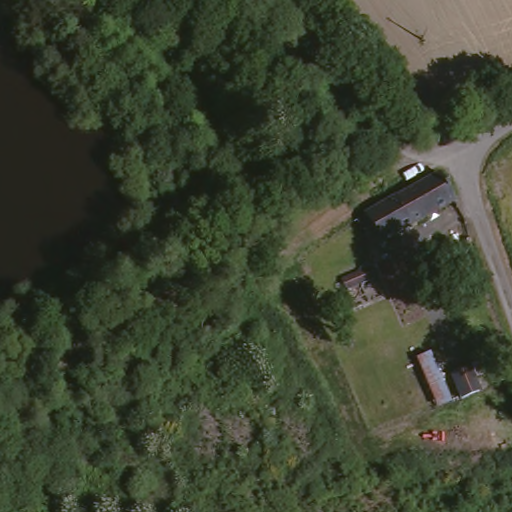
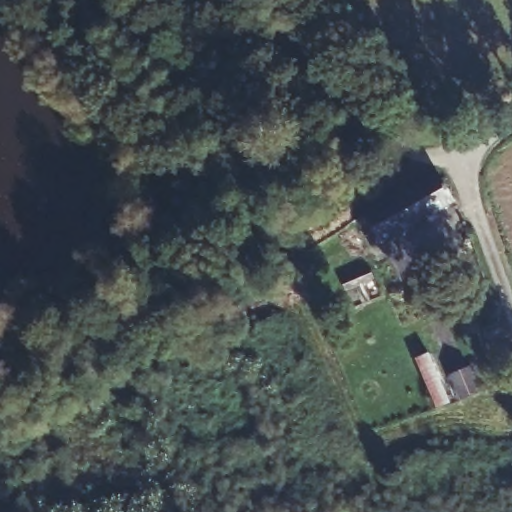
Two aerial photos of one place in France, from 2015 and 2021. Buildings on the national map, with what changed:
unchanged [(375,246),(361,213),(371,207),(445,168),(458,190),(381,230),(385,240),(375,246)]
unchanged [(445,390),(434,394),(415,347),(426,343),(445,390)]
unchanged [(466,356),(475,380),(458,386),(449,361),(466,356)]

